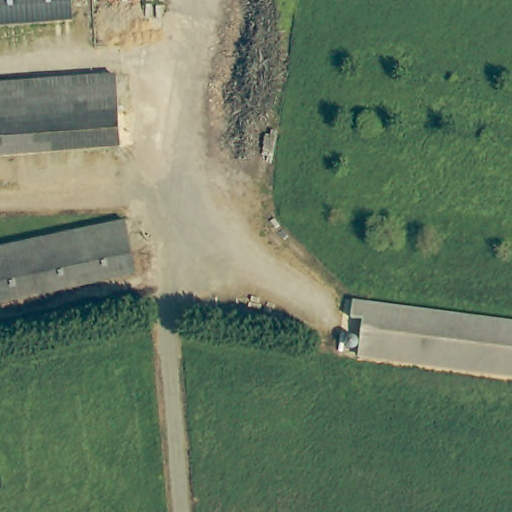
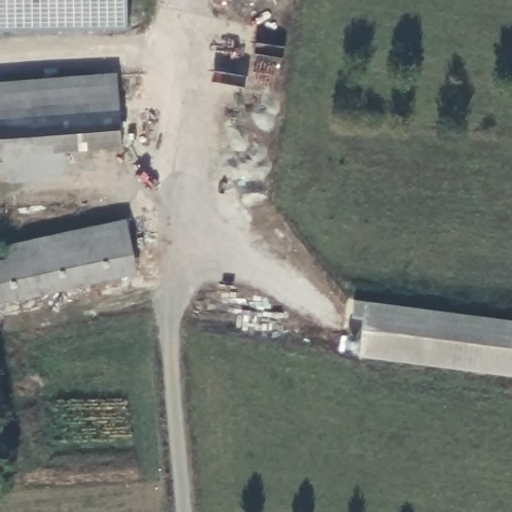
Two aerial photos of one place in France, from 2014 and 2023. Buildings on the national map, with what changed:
demolished [(0,23),(0,0),(69,0),(70,19),(0,23)]
new [(0,30),(0,0),(128,0),(129,30),(0,30)]
unchanged [(119,143),(0,153),(0,85),(114,76),(119,143)]
unchanged [(133,272),(0,299),(0,245),(124,219),(133,272)]
unchanged [(352,298),(363,300),(362,303),(512,322),(512,365),(358,350),(361,316),(349,315),(352,298)]

